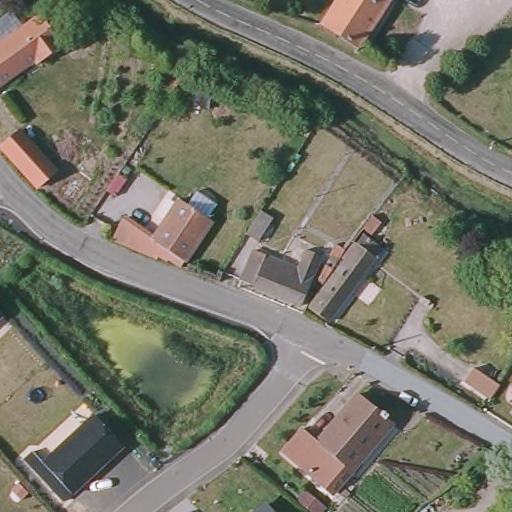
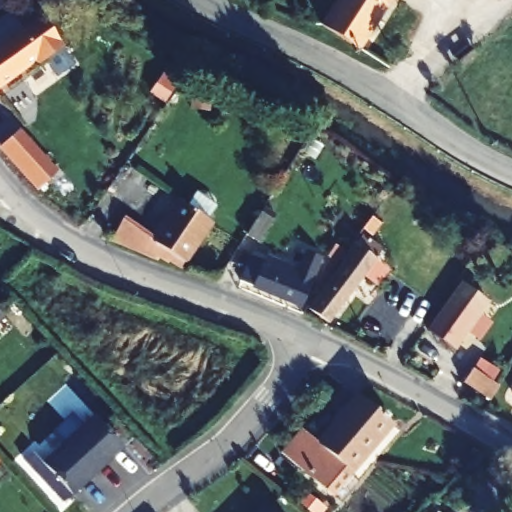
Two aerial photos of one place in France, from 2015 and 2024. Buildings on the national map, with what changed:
unchanged [(390,0),(359,49),(320,24),(334,0),(390,0)]
unchanged [(50,9),(72,41),(0,90),(0,43),(50,9)]
unchanged [(19,130),(58,172),(37,188),(2,143),(19,130)]
unchanged [(219,215),(189,259),(175,250),(172,254),(157,244),(153,249),(125,230),(131,218),(162,237),(185,194),(219,215)]
unchanged [(384,222),(375,233),(367,228),(377,216),(384,222)]
unchanged [(314,311),(351,264),(347,261),(368,238),(381,249),(376,257),(380,260),(329,323),(314,311)]
unchanged [(307,248),(321,252),(312,270),(301,302),(275,293),(235,281),(243,254),(252,258),(255,251),(285,261),(302,267),(307,248)]
new [(455,348),(430,332),(460,282),(486,298),(455,348)]
unchanged [(471,375),(479,363),(505,376),(497,393),(471,375)]
unchanged [(317,475),(304,465),(300,468),(296,465),(281,453),(301,430),(304,432),(317,442),(355,395),(390,423),(347,471),(339,464),(324,480),(317,475)]
unchanged [(121,445),(70,491),(40,461),(92,414),(121,445)]
unchanged [(320,510),(301,496),(297,493),(304,485),(307,488),(326,501),(320,510)]
unchanged [(279,512),(252,512),(252,510),(262,502),(269,502),(279,512)]

